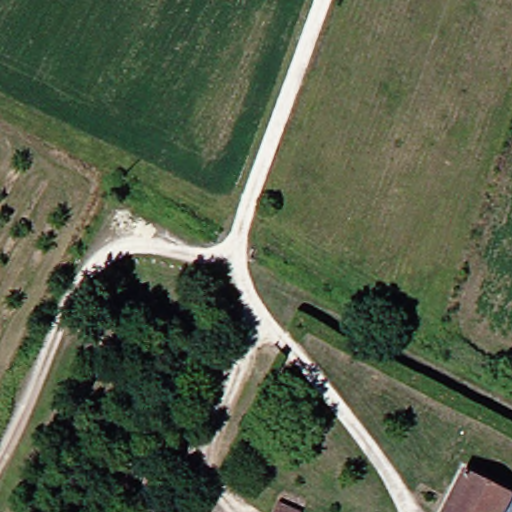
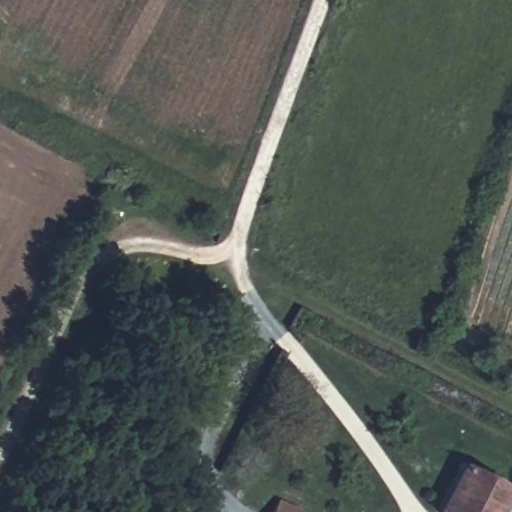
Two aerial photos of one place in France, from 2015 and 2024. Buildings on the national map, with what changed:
unchanged [(425,511),(449,464),(512,496),(512,498),(505,512),(427,512),(425,511)]
unchanged [(275,501),(298,511),(298,512),(270,512),(275,501)]

